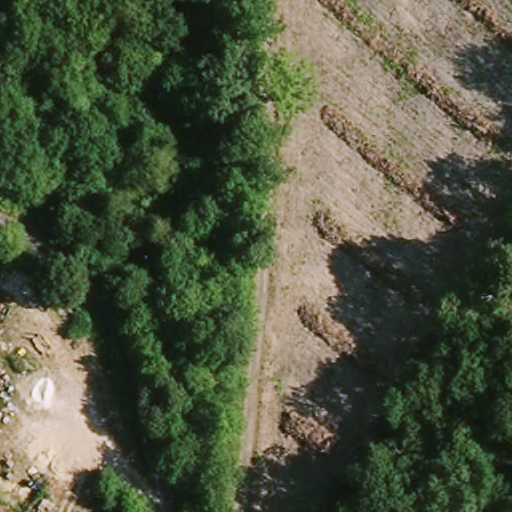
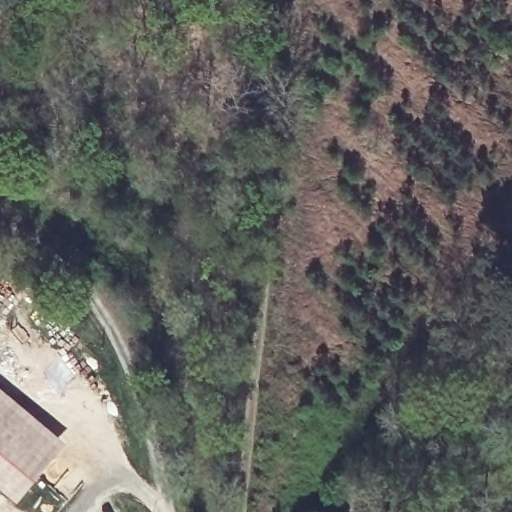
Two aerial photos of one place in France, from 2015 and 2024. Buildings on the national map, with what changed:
new [(50,461),(0,420),(0,394),(63,445),(50,461)]
new [(15,504),(0,492),(0,420),(50,461),(15,504)]

